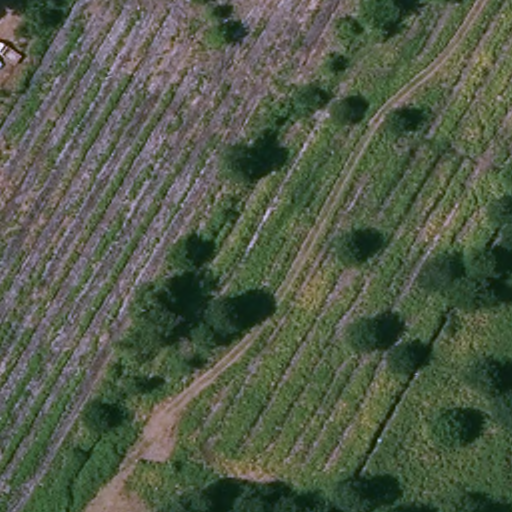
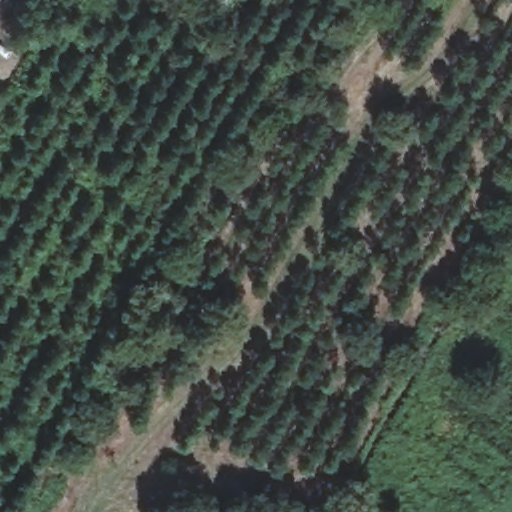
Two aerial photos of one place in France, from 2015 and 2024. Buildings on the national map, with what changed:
[]

